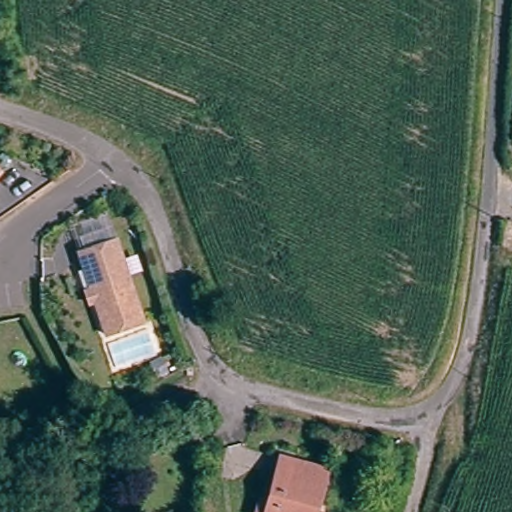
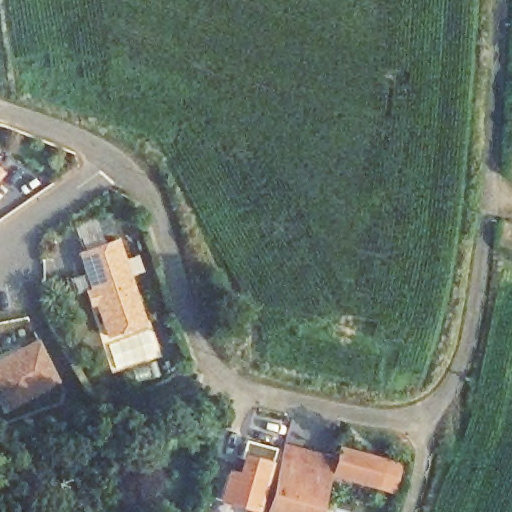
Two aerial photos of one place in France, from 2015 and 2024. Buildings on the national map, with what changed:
unchanged [(103,326),(75,244),(113,231),(124,264),(130,263),(134,275),(129,277),(141,314),(103,326)]
new [(0,397),(0,360),(41,340),(61,382),(6,410),(0,397)]
unchanged [(164,358),(170,373),(161,376),(157,378),(151,363),(164,358)]
new [(219,502),(228,469),(237,472),(247,441),(276,449),(260,511),(219,502)]
new [(325,472),(283,461),(287,445),(335,456),(337,449),(355,454),(357,449),(388,459),(379,489),(325,472)]
unchanged [(325,472),(314,512),(269,512),(283,461),(325,472)]

